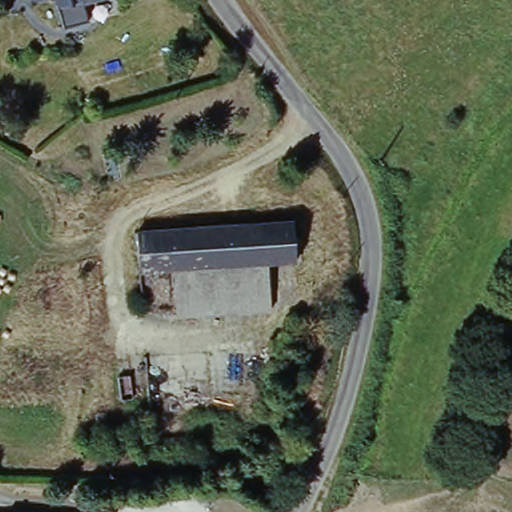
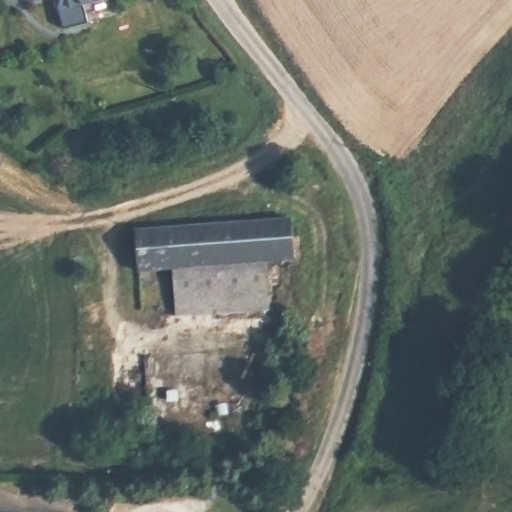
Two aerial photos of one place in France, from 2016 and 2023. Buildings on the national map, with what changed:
unchanged [(80,6),(55,12),(52,0),(107,0),(80,6)]
unchanged [(299,218),(300,260),(275,262),(273,220),(299,218)]
unchanged [(275,262),(272,263),(181,268),(148,271),(146,230),(273,220),(275,262)]
unchanged [(275,314),(185,320),(181,268),(272,263),(275,314)]

